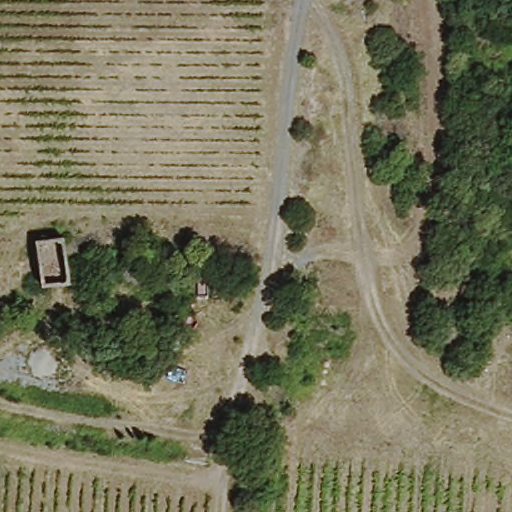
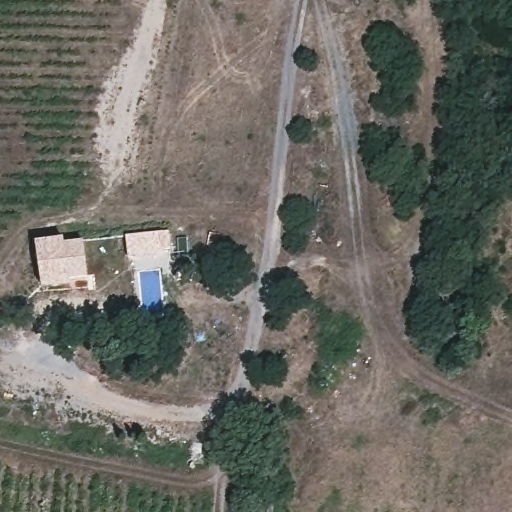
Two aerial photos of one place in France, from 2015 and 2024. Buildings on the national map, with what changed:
new [(170,231),(173,250),(166,252),(166,255),(128,260),(125,235),(170,231)]
new [(35,242),(63,238),(64,242),(83,240),(86,278),(70,279),(70,285),(42,288),(35,242)]

